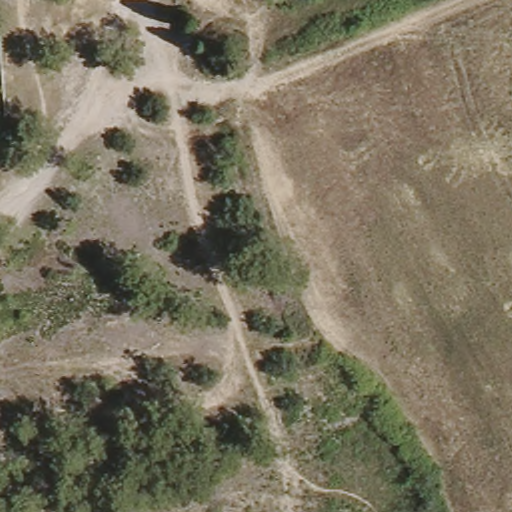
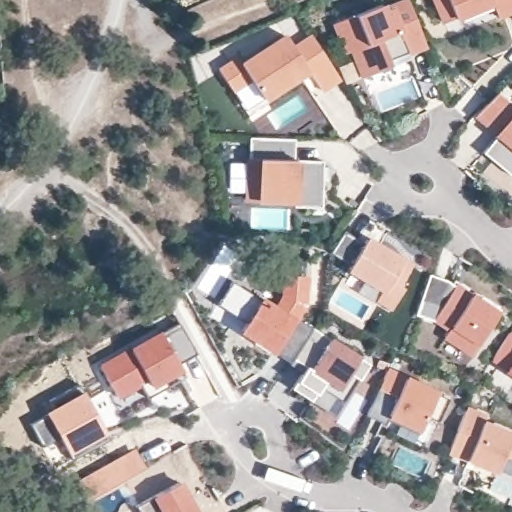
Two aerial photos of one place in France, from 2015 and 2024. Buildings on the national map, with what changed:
new [(392,65),(364,77),(353,50),(347,53),(335,22),(382,4),(384,9),(408,0),(409,0),(427,45),(390,59),(409,52),(411,59),(392,65)]
new [(433,0),(490,0),(441,20),(433,0)]
new [(493,0),(512,0),(512,8),(498,14),(493,0)]
new [(340,77),(321,89),(308,69),(264,98),(250,77),(232,89),(219,69),(238,57),(242,63),(286,34),(294,48),(313,35),(340,77)]
new [(484,151),(495,135),(475,118),(498,93),(512,103),(512,171),(510,173),(484,151)]
new [(314,139),(313,159),(342,160),(340,207),(313,206),(313,200),(267,199),(269,137),(314,139)]
new [(344,230),(363,243),(366,239),(410,268),(397,288),(401,290),(389,309),(374,299),(380,290),(347,268),(349,265),(330,253),(344,230)]
new [(430,274),(447,280),(478,300),(481,295),(500,308),(472,353),(444,335),(449,328),(434,319),(434,320),(416,314),(430,274)]
new [(257,302),(262,294),(277,304),(281,297),(282,275),(309,277),(308,306),(299,319),(312,328),(292,359),(289,366),(270,353),(239,333),(245,322),(216,305),(232,280),(257,302)]
new [(455,279),(465,286),(463,290),(452,283),(455,279)]
new [(168,386),(147,398),(139,384),(117,396),(100,367),(179,323),(197,354),(179,364),(181,368),(185,376),(168,386)]
new [(310,401),(291,389),(305,367),(292,359),(312,328),(367,364),(343,402),(334,416),(310,401)]
new [(512,375),(507,373),(510,368),(493,358),(510,331),(512,332),(512,375)]
new [(448,399),(437,422),(426,416),(420,429),(389,415),(384,424),(366,416),(386,370),(448,399)]
new [(43,412),(84,390),(108,437),(68,459),(57,439),(42,447),(29,423),(45,414),(43,412)]
new [(448,451),(466,408),(485,416),(483,422),(512,434),(511,436),(512,436),(512,476),(497,471),(448,451)]
new [(135,448),(145,466),(87,500),(76,480),(135,448)]
new [(150,498),(181,482),(199,512),(140,512),(137,507),(150,498)]

